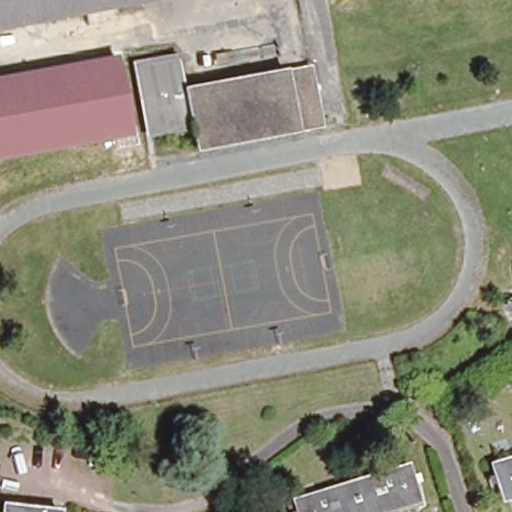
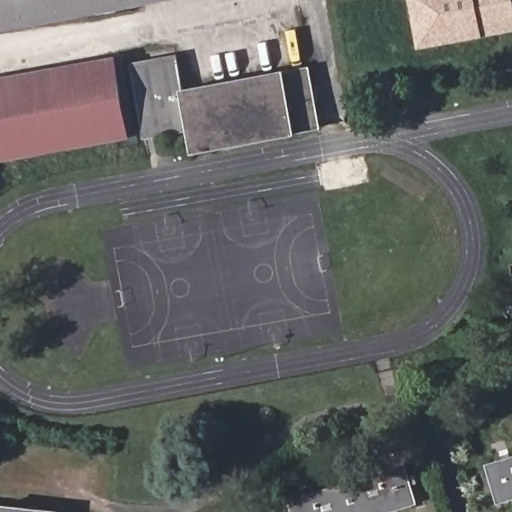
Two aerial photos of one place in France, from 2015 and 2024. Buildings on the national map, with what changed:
unchanged [(0,0),(131,0),(0,27),(0,0)]
new [(418,50),(409,0),(512,0),(512,32),(418,50)]
unchanged [(0,80),(116,57),(117,67),(131,136),(55,152),(0,162),(0,80)]
unchanged [(182,154),(179,140),(179,137),(162,138),(132,141),(131,136),(117,67),(167,58),(174,94),(302,67),(314,127),(230,145),(182,154)]
unchanged [(512,455),(512,498),(502,502),(490,462),(512,455)]
unchanged [(293,512),(289,499),(400,464),(412,503),(384,512),(293,512)]
unchanged [(57,512),(0,512),(0,504),(57,511),(57,512)]

